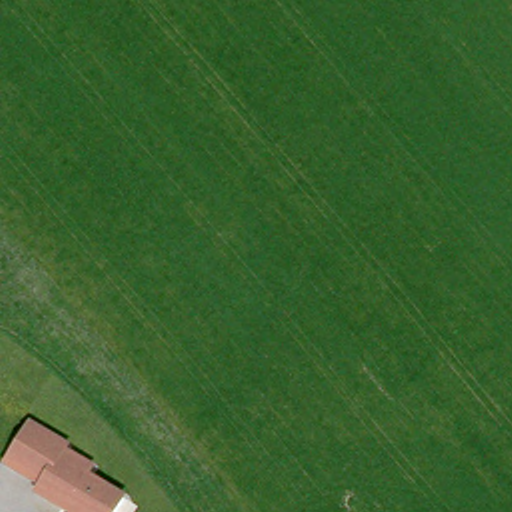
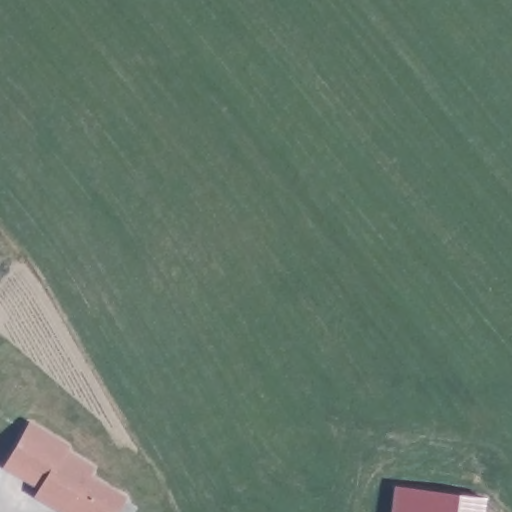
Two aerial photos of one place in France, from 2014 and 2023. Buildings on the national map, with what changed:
unchanged [(33,494),(38,484),(5,465),(30,422),(69,445),(66,450),(95,467),(90,475),(127,497),(118,512),(64,512),(33,494)]
new [(485,497),(483,512),(390,512),(394,485),(485,497)]

